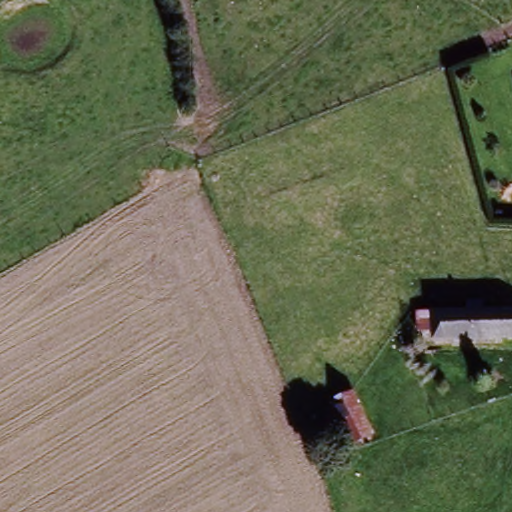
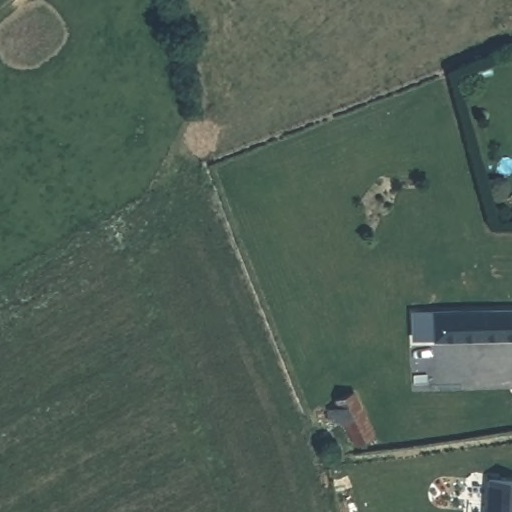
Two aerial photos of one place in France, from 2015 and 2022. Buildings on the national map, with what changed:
unchanged [(467,317),(467,311),(479,310),(479,317),(512,318),(512,340),(429,340),(429,317),(467,317)]
unchanged [(343,403),(340,396),(359,391),(371,435),(353,441),(344,415),(336,417),(334,406),(343,403)]
new [(486,512),(488,480),(512,481),(512,512),(486,512)]

